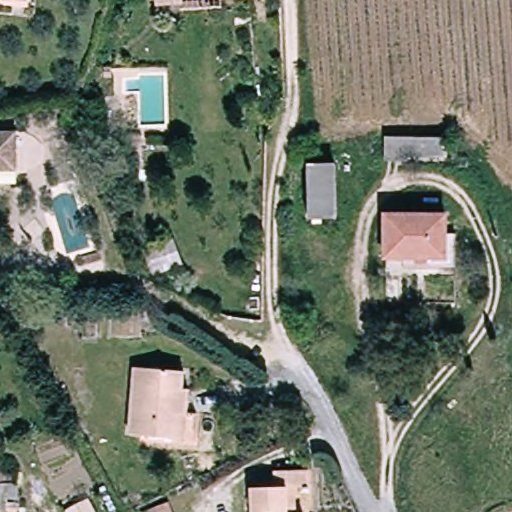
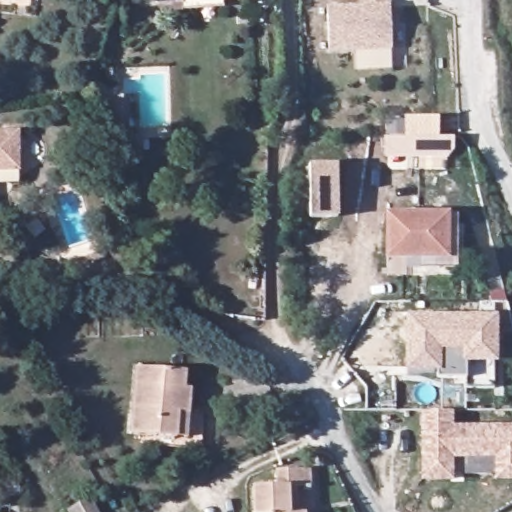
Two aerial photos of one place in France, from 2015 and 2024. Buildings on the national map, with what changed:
unchanged [(0,5),(0,0),(28,0),(28,7),(15,6),(0,5)]
unchanged [(191,10),(165,12),(164,0),(199,0),(191,1),(191,10)]
unchanged [(229,5),(229,0),(265,0),(265,2),(229,5)]
new [(329,52),(328,6),(359,5),(358,0),(391,0),(391,50),(329,52)]
unchanged [(26,134),(24,172),(17,172),(0,172),(0,133),(18,133),(26,134)]
unchanged [(456,137),(457,137),(458,149),(388,162),(386,146),(456,137)]
unchanged [(344,216),(312,217),(312,165),(344,164),(344,216)]
unchanged [(448,208),(447,225),(461,225),(460,262),(407,262),(407,254),(387,254),(388,208),(448,208)]
new [(176,240),(185,263),(157,273),(148,250),(176,240)]
new [(493,312),(495,382),(465,383),(465,373),(437,375),(437,371),(408,372),(407,313),(493,312)]
unchanged [(180,435),(136,431),(144,367),(190,371),(188,389),(199,390),(196,412),(192,436),(180,435)]
new [(450,427),(512,427),(512,478),(495,478),(495,457),(451,457),(451,479),(422,480),(422,411),(450,411),(450,427)]
unchanged [(314,491),(303,491),(303,512),(257,512),(256,487),(294,484),(293,471),(314,471),(314,491)]
demolished [(23,512),(0,512),(0,505),(0,479),(23,477),(23,512)]
unchanged [(71,511),(94,498),(101,512),(72,512),(71,511)]
unchanged [(175,503),(178,512),(148,512),(175,503)]

